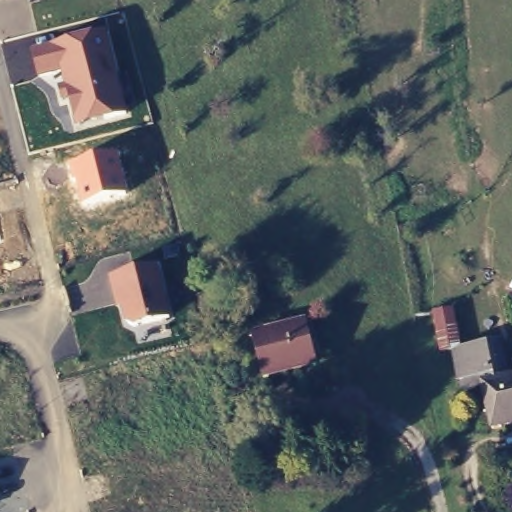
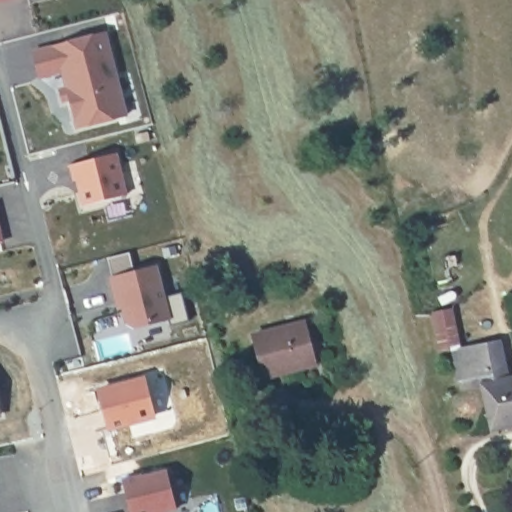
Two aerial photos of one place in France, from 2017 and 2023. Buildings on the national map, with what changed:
unchanged [(17,0),(0,4),(0,0),(17,0)]
unchanged [(76,130),(70,102),(62,104),(59,89),(65,87),(62,75),(40,81),(32,51),(108,31),(129,116),(76,130)]
unchanged [(121,168),(127,194),(82,207),(77,181),(73,182),(70,170),(68,162),(117,150),(121,168)]
unchanged [(1,240),(0,240),(0,236),(1,240)]
unchanged [(135,329),(125,324),(121,310),(117,311),(108,277),(157,265),(170,320),(135,329)]
unchanged [(253,338),(306,322),(316,364),(263,380),(253,338)]
new [(111,425),(102,390),(143,378),(153,415),(111,425)]
new [(141,476),(142,478),(167,472),(177,508),(163,512),(132,512),(123,480),(141,476)]

